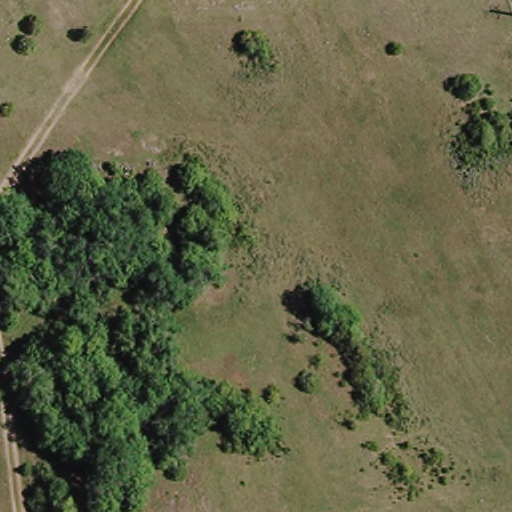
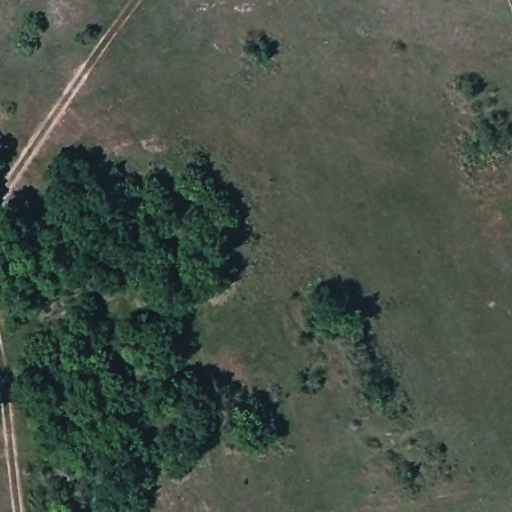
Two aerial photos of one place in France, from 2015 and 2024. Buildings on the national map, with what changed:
[]

